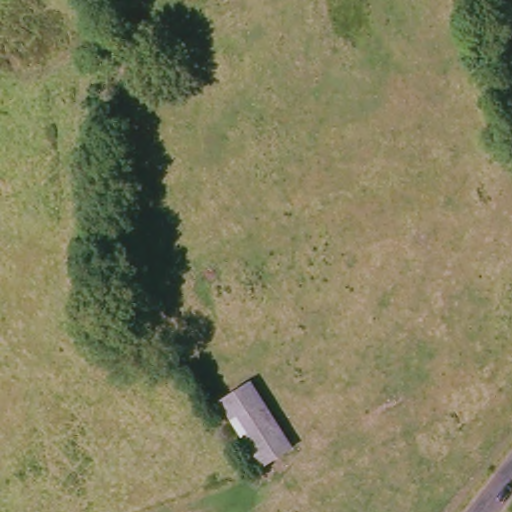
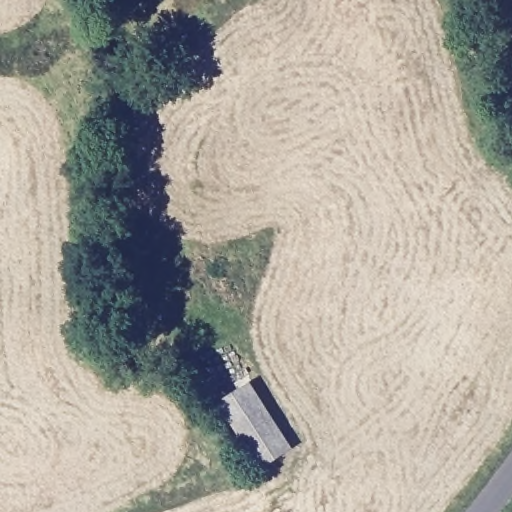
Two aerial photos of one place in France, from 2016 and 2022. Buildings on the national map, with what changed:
unchanged [(293,449),(263,468),(222,404),(253,384),(293,449)]

